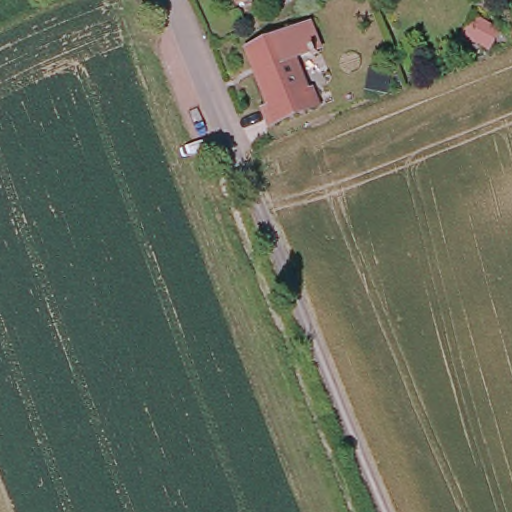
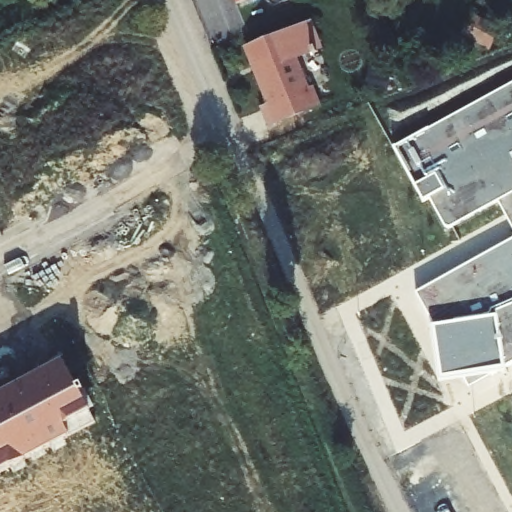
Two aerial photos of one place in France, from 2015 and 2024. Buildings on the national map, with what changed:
unchanged [(243,0),(251,0),(245,2),(243,0)]
unchanged [(322,45),(297,54),(302,70),(307,67),(323,107),(272,127),(265,110),(272,107),(258,72),(250,50),(257,47),(313,24),(322,45)]
new [(498,202),(447,231),(430,199),(423,203),(393,148),(512,83),(512,228),(498,202)]
new [(468,387),(415,293),(512,242),(512,363),(468,387)]
new [(95,423),(0,473),(0,394),(61,362),(95,423)]

